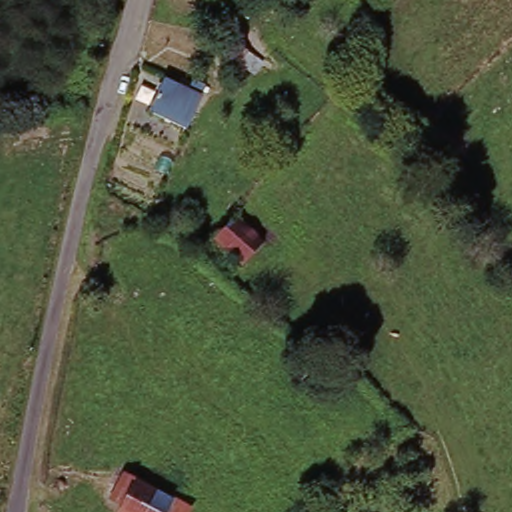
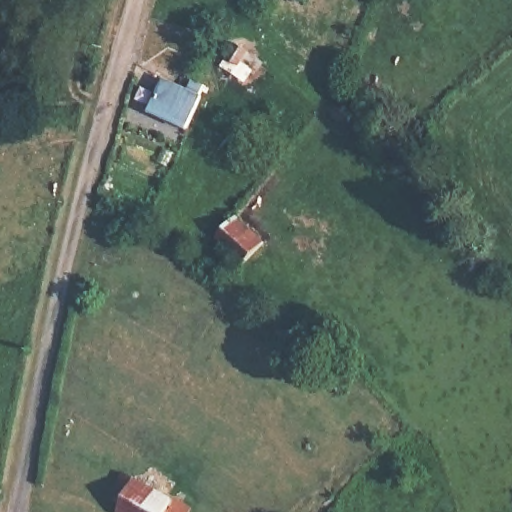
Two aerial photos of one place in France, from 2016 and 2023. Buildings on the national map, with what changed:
unchanged [(255,51),(245,65),(230,57),(241,43),(255,51)]
unchanged [(190,91),(196,80),(205,85),(200,97),(204,99),(186,131),(150,111),(165,78),(190,91)]
unchanged [(264,239),(242,261),(217,237),(237,215),(264,239)]
unchanged [(127,512),(130,505),(118,499),(132,475),(181,500),(199,509),(197,512),(127,512)]

